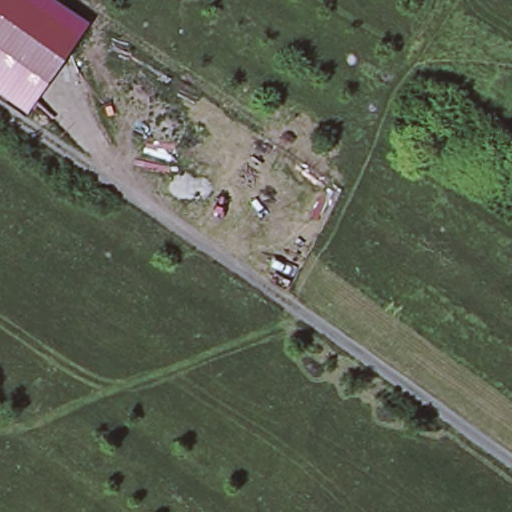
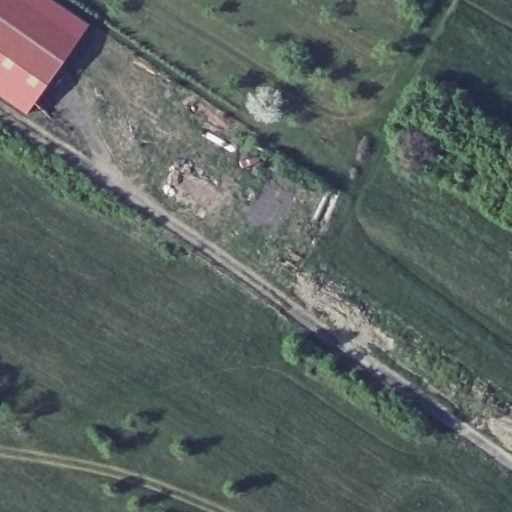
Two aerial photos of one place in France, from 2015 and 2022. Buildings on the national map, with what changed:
unchanged [(88,21),(28,112),(0,93),(0,0),(57,0),(88,21)]

